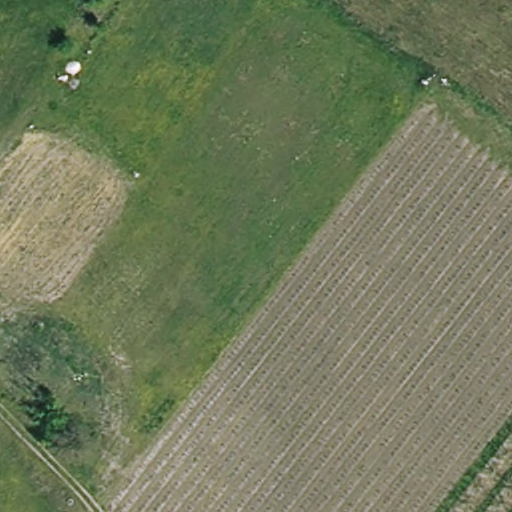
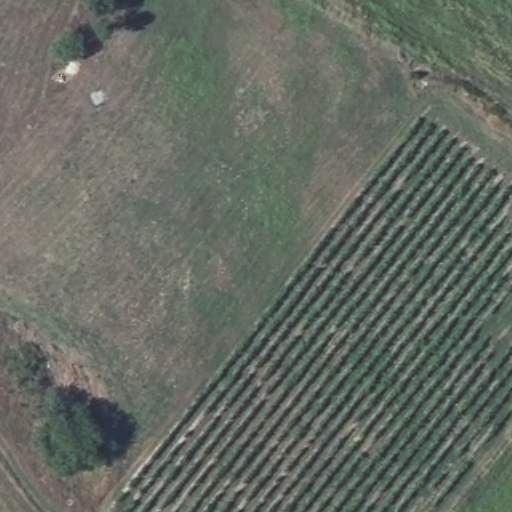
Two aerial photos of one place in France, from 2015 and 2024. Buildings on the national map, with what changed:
[]

